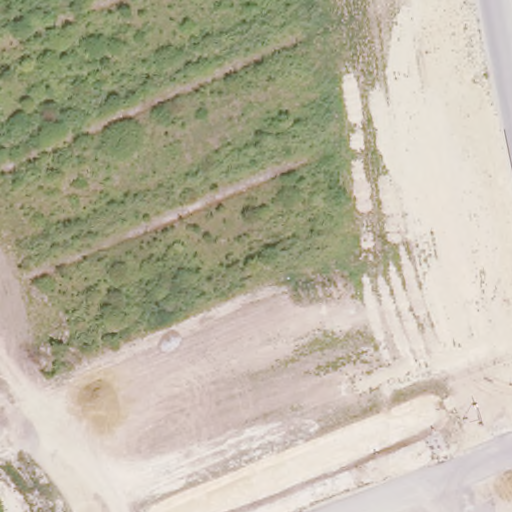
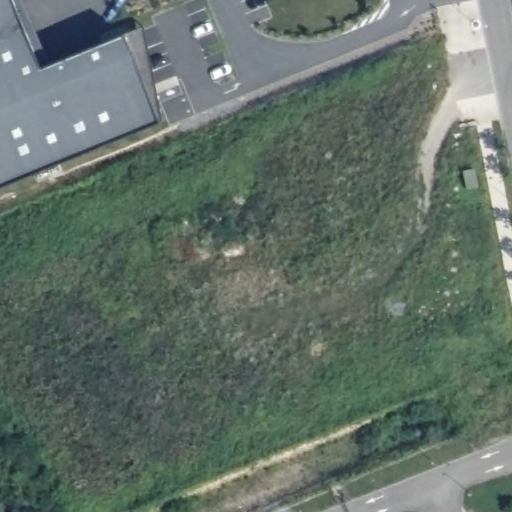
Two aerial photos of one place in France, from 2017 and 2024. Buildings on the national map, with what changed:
new [(52,67),(145,29),(159,120),(0,186),(0,0),(24,0),(52,67)]
new [(473,167),(476,186),(465,188),(462,169),(473,167)]

